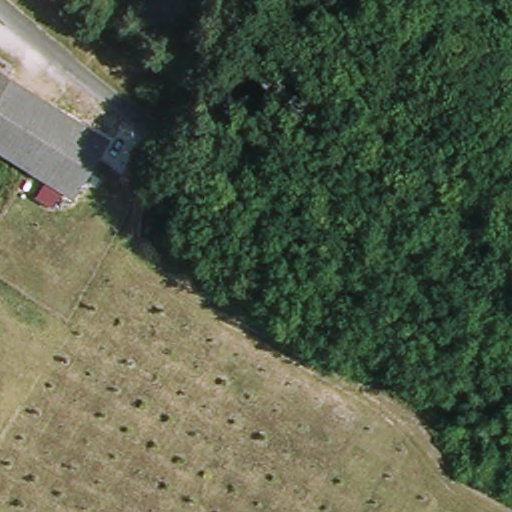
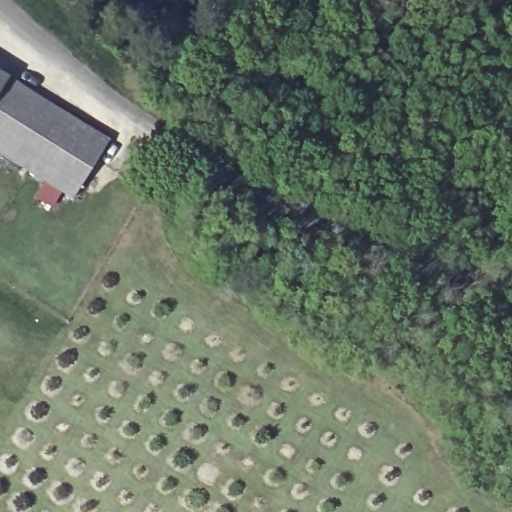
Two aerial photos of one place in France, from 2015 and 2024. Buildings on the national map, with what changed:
unchanged [(77,195),(0,147),(0,66),(112,137),(77,195)]

